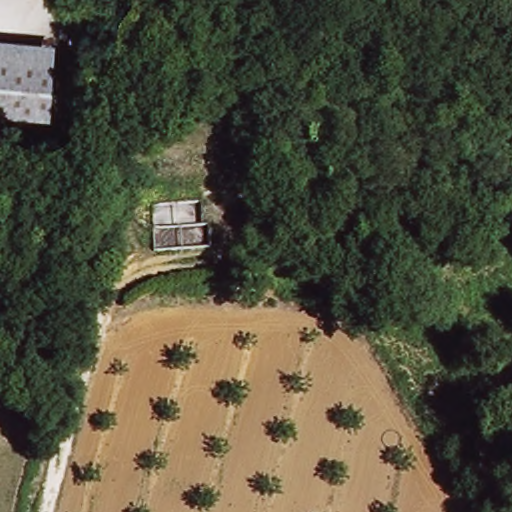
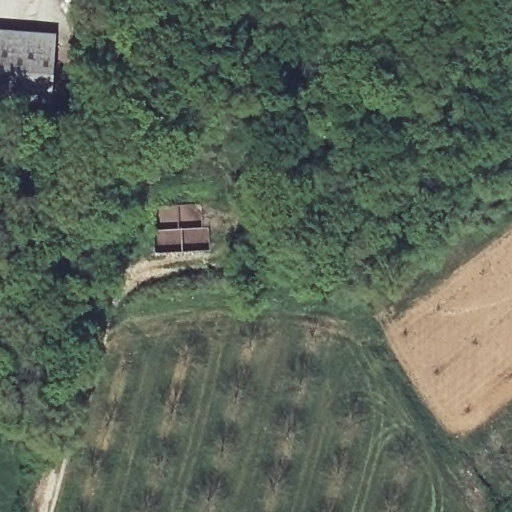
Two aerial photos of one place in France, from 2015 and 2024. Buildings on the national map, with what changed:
unchanged [(49,93),(0,84),(0,28),(58,38),(49,93)]

